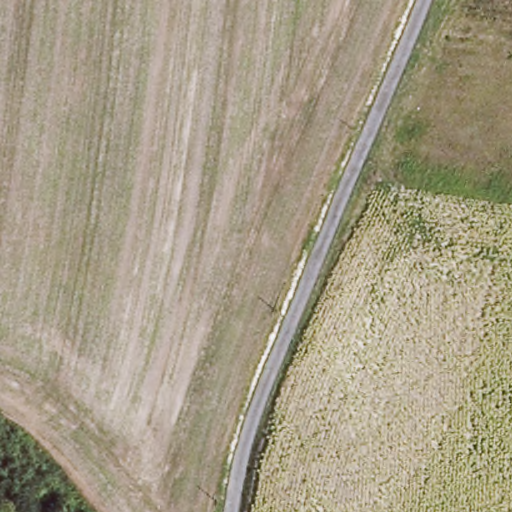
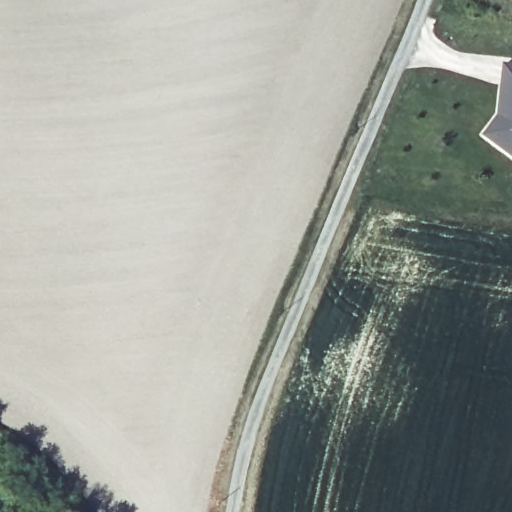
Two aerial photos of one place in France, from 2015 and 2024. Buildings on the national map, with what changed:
new [(500,114),(506,62),(512,63),(512,154),(485,134),(500,114)]

